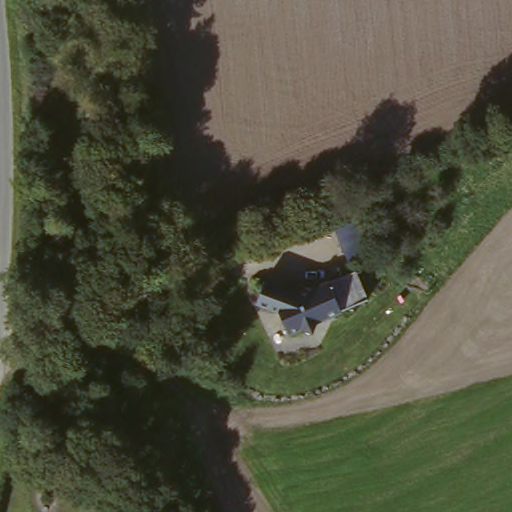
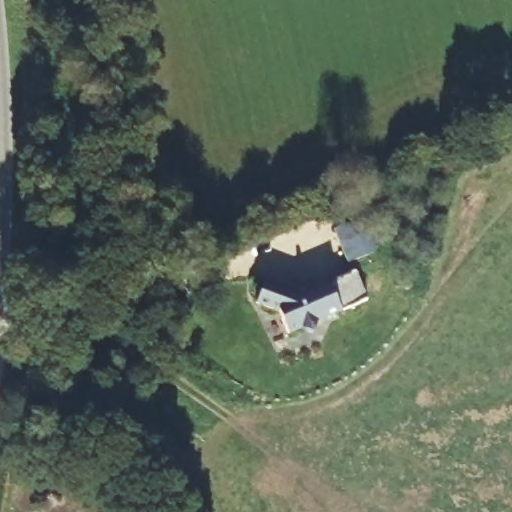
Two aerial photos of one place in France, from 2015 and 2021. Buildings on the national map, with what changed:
unchanged [(322,290),(364,272),(377,299),(332,318),(326,336),(308,328),(301,333),(285,310),(262,300),(272,279),(292,288),(305,283),(322,290)]

